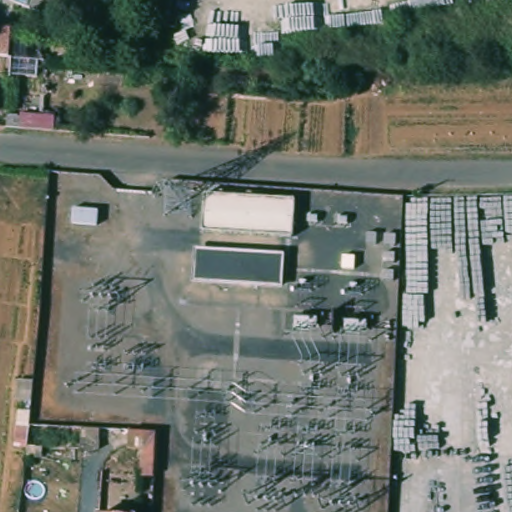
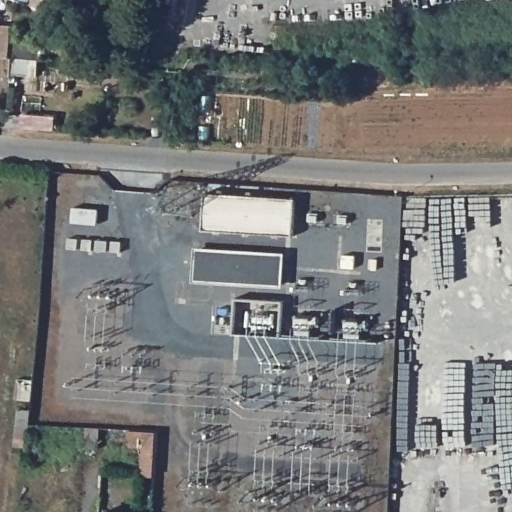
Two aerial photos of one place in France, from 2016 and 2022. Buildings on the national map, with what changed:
unchanged [(10,38),(7,61),(7,70),(4,69),(2,75),(0,75),(0,38),(10,38)]
unchanged [(299,196),(297,239),(201,232),(203,191),(299,196)]
unchanged [(284,253),(283,285),(191,280),(193,250),(284,253)]
unchanged [(144,478),(145,450),(131,450),(132,434),(159,435),(157,479),(144,478)]

